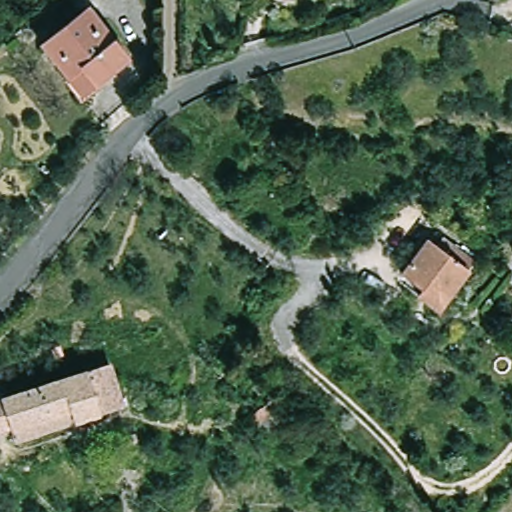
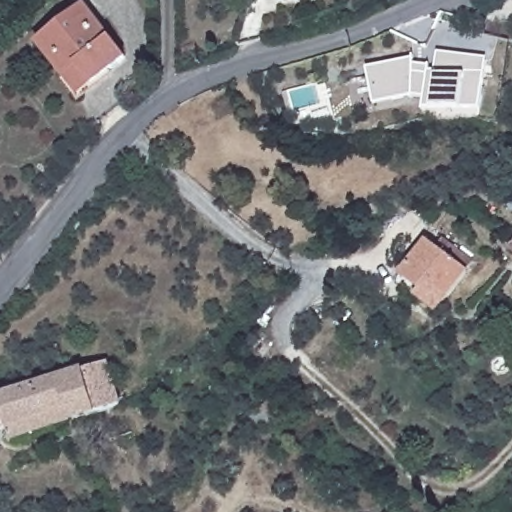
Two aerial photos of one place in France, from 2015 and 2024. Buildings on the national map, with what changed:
unchanged [(70,79),(42,44),(88,6),(129,58),(97,83),(83,95),(70,79)]
new [(415,58),(415,63),(431,65),(430,70),(434,69),(437,51),(488,56),(481,109),(423,108),(424,97),(411,95),(374,104),(366,68),(415,58)]
unchanged [(470,270),(439,307),(408,281),(411,278),(405,273),(433,239),(470,270)]
unchanged [(11,439),(8,428),(0,430),(0,396),(108,362),(121,404),(11,439)]
unchanged [(112,507),(113,512),(97,512),(97,511),(112,507)]

